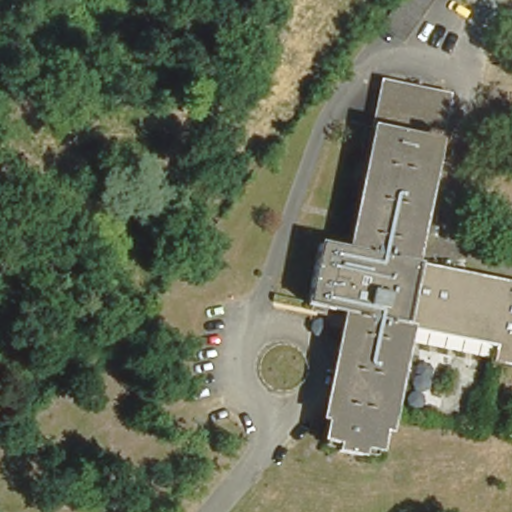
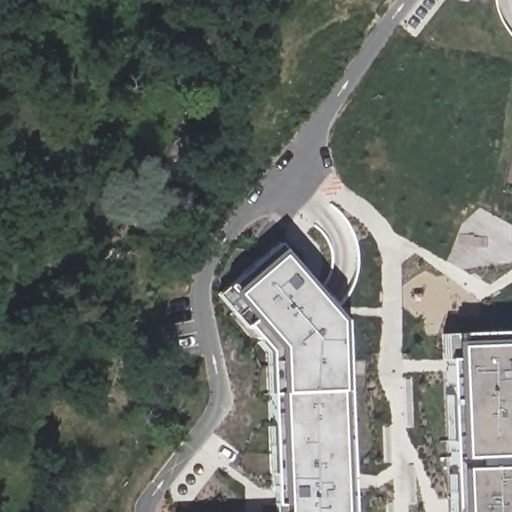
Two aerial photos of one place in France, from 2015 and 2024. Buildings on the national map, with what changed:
demolished [(396,0),(429,0),(402,37),(380,21),(396,0)]
demolished [(512,370),(501,368),(504,354),(481,349),(419,336),(411,335),(393,420),(401,421),(397,440),(389,438),(386,458),(370,455),(369,463),(345,459),(346,450),(329,446),(354,321),(311,313),(325,252),(349,257),(356,258),(379,151),(372,149),(385,84),(451,97),(438,163),(432,161),(411,270),(415,270),(512,290),(512,370)]
new [(347,318),(354,512),(285,512),(275,354),(222,292),(277,245),(347,318)]
new [(512,512),(454,512),(448,332),(512,333),(512,512)]

